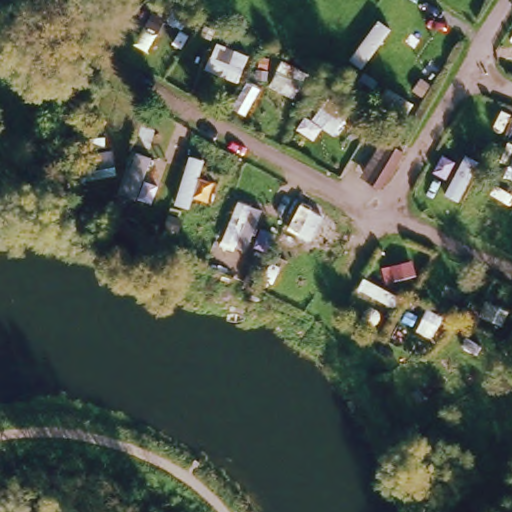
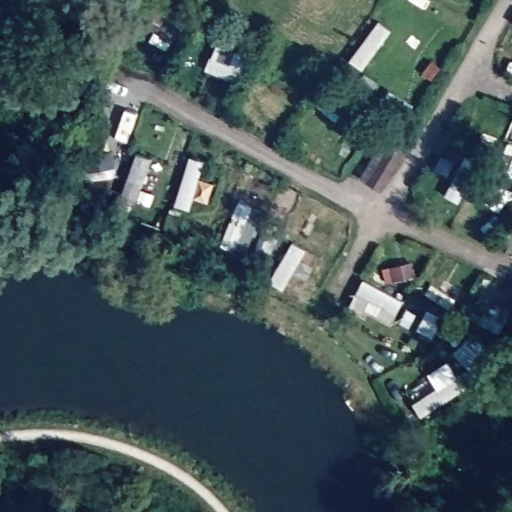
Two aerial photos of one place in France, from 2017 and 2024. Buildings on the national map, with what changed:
unchanged [(361,175),(382,140),(405,152),(381,188),(361,175)]

